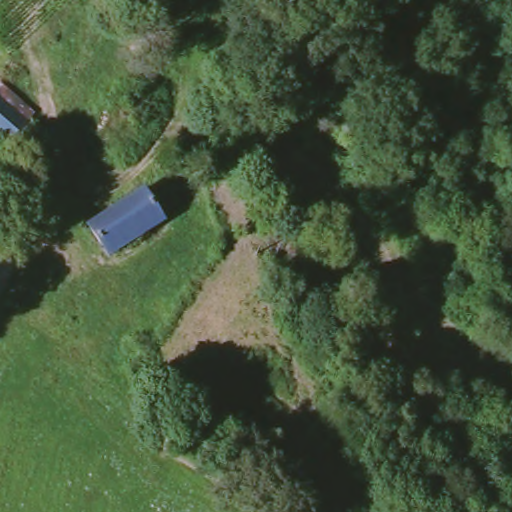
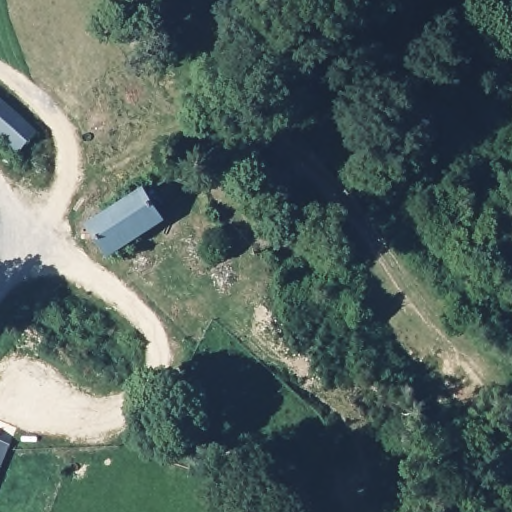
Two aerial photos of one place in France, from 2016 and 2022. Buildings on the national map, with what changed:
unchanged [(42,125),(25,146),(0,125),(0,93),(30,116),(42,125)]
unchanged [(171,215),(118,260),(94,232),(147,188),(171,215)]
new [(0,440),(11,445),(0,471),(0,440)]

